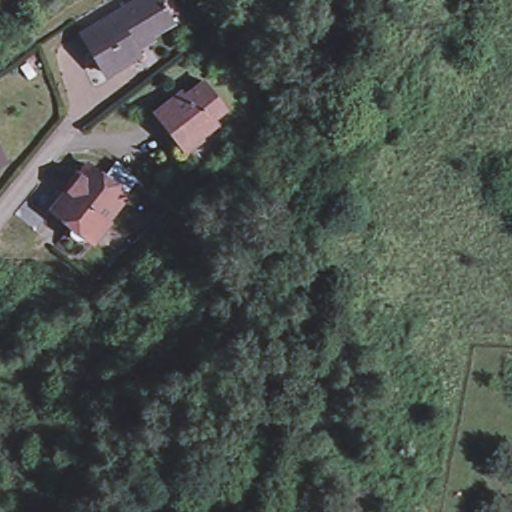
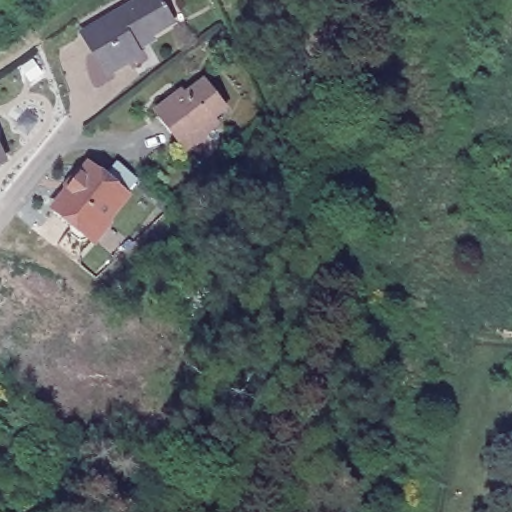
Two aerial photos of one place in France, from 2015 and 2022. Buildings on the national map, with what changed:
unchanged [(132,46),(134,50),(103,69),(78,28),(126,0),(157,0),(167,17),(146,30),(149,36),(132,46)]
unchanged [(186,144),(162,113),(180,98),(189,91),(192,96),(213,80),(234,109),(222,118),(226,125),(209,138),(211,140),(210,141),(193,154),(186,144)]
unchanged [(0,169),(0,157),(5,166),(0,169)]
unchanged [(130,196),(108,222),(106,220),(89,242),(82,242),(75,237),(73,231),(78,225),(59,210),(94,166),(130,196)]

